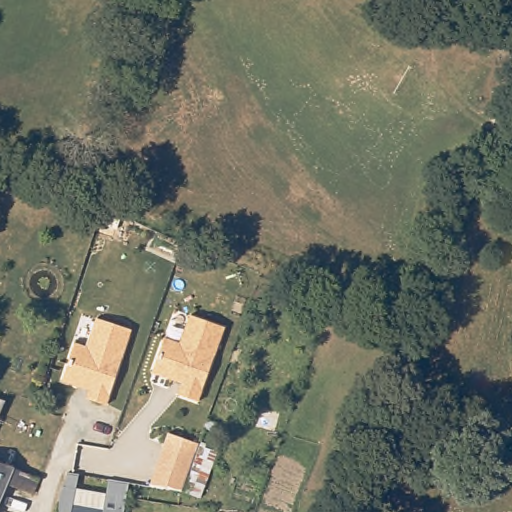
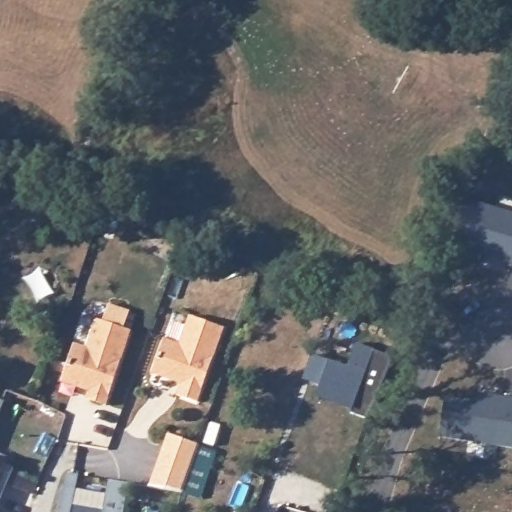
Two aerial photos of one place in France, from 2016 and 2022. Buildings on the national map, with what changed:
new [(467,200),(512,213),(512,264),(482,255),(485,247),(459,239),(467,200)]
unchanged [(225,327),(199,402),(176,395),(180,384),(152,373),(165,337),(180,342),(190,315),(225,327)]
unchanged [(106,405),(86,399),(89,391),(62,383),(75,344),(86,348),(96,319),(131,331),(106,405)]
new [(351,411),(353,405),(335,399),(333,401),(316,395),(320,385),(303,379),(312,354),(330,360),(348,366),(357,343),(393,357),(367,417),(351,411)]
new [(445,397),(476,400),(477,392),(510,397),(511,395),(512,395),(512,447),(440,437),(445,397)]
unchanged [(0,413),(0,400),(5,401),(0,413)]
unchanged [(218,450),(201,500),(180,492),(150,487),(169,433),(218,450)]
unchanged [(35,491),(9,480),(0,503),(0,462),(40,478),(35,491)]
unchanged [(65,474),(133,483),(130,512),(61,512),(65,474)]

